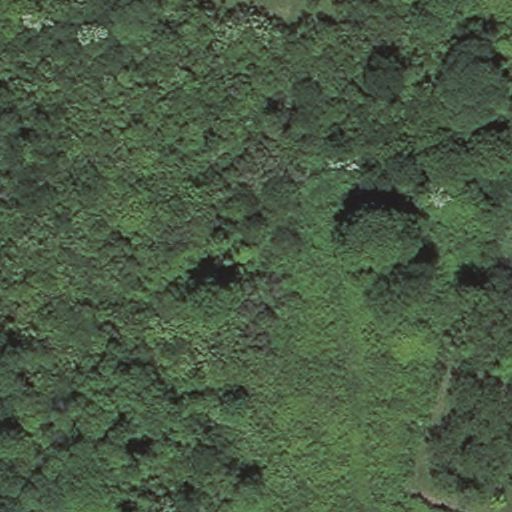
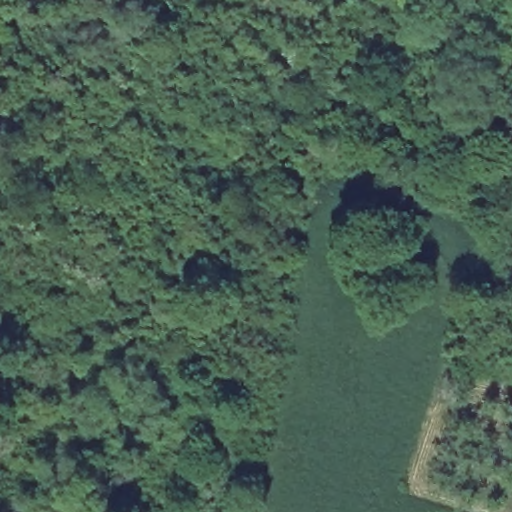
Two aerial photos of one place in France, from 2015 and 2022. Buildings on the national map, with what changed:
unchanged [(512,201),(510,200),(512,194),(512,201)]

